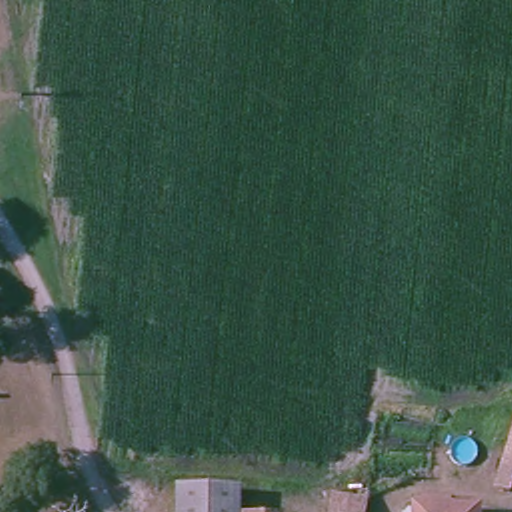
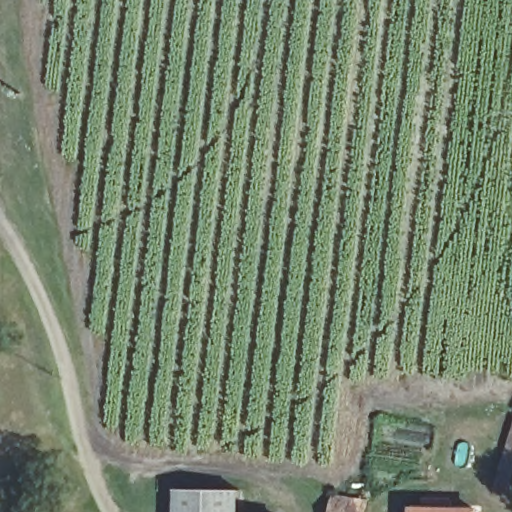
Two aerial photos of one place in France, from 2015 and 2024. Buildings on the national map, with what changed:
unchanged [(512,486),(495,483),(512,422),(512,486)]
unchanged [(180,483),(242,487),(241,499),(240,512),(177,512),(180,492),(180,483)]
unchanged [(362,512),(337,512),(337,495),(362,499),(362,512)]
unchanged [(465,512),(413,512),(413,510),(465,512)]

